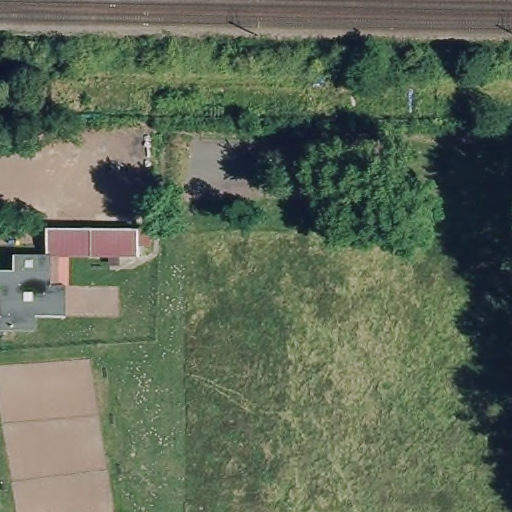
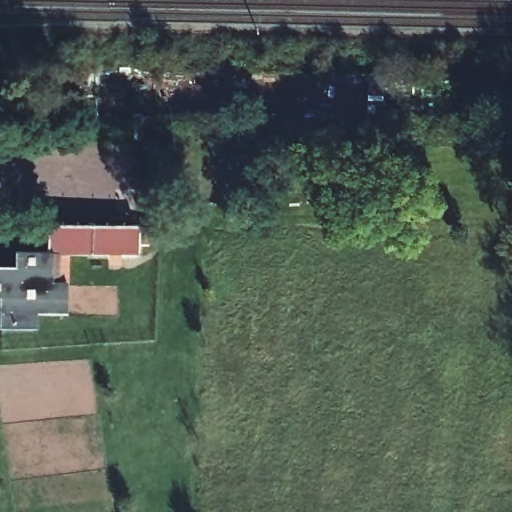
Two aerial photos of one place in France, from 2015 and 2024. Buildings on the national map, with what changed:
unchanged [(28,310),(27,324),(0,323),(0,263),(12,263),(12,249),(39,249),(40,224),(146,227),(146,236),(135,236),(133,255),(64,253),(63,282),(57,282),(56,311),(28,310)]

